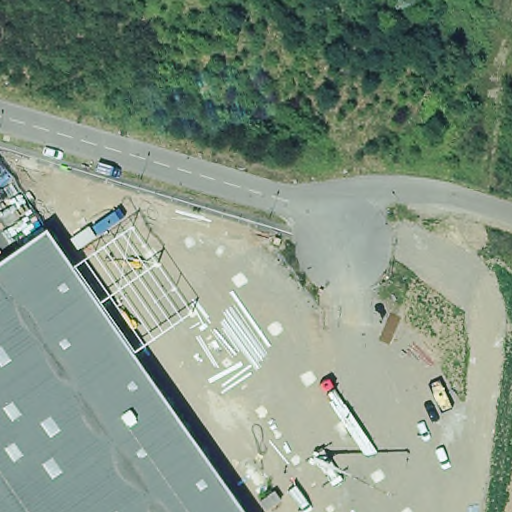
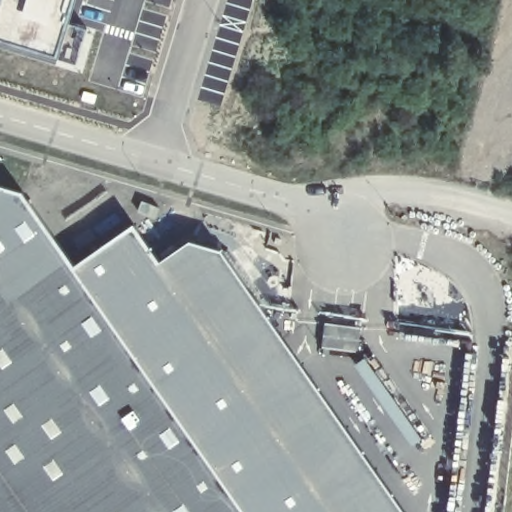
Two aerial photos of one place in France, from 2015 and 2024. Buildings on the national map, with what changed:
new [(77,0),(64,46),(68,47),(66,53),(75,56),(72,63),(0,41),(0,0),(77,0)]
new [(24,193),(50,232),(0,270),(0,186),(24,193)]
new [(75,268),(134,225),(161,261),(191,241),(223,250),(404,512),(244,512),(75,268)]
unchanged [(50,232),(244,512),(0,512),(0,270),(50,232)]

